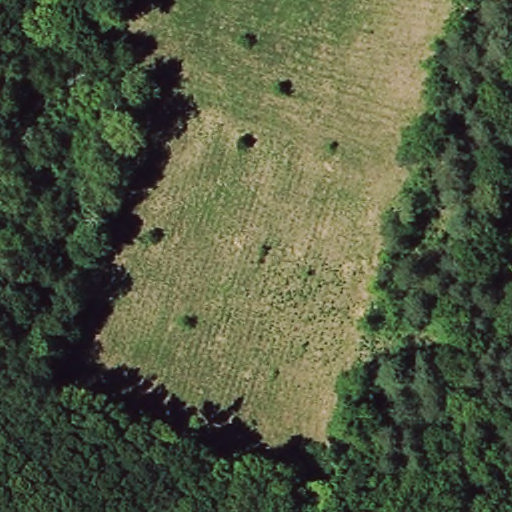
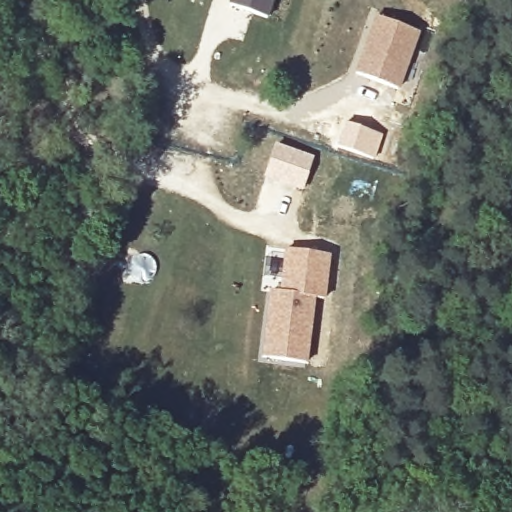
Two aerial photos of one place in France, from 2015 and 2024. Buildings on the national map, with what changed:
new [(230,0),(275,0),(270,17),(228,5),(230,0)]
new [(378,18),(419,31),(402,89),(360,76),(378,18)]
new [(272,292),(282,293),(285,250),(329,253),(324,298),(314,297),(309,363),(266,359),(272,292)]

